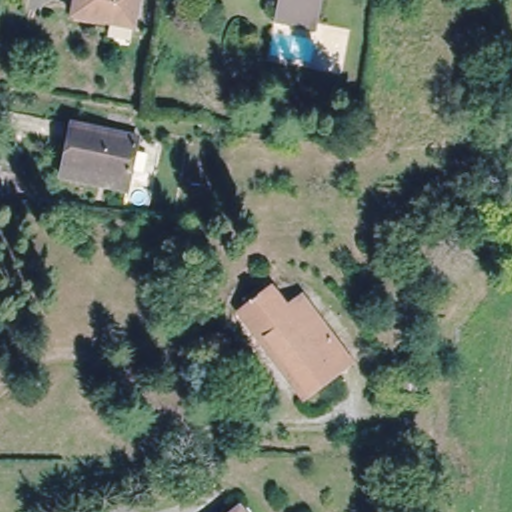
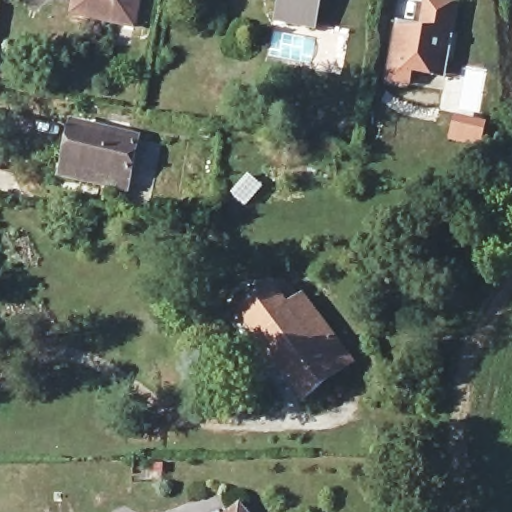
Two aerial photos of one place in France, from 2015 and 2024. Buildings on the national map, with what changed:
unchanged [(80,0),(142,0),(138,25),(86,14),(78,12),(80,0)]
unchanged [(311,17),(280,12),(282,0),(313,0),(311,17)]
unchanged [(325,1),(319,0),(325,0),(325,1)]
new [(458,4),(452,39),(449,37),(442,80),(412,76),(410,87),(386,83),(395,21),(420,25),(424,0),(438,0),(458,4)]
unchanged [(62,179),(63,171),(73,124),(140,139),(131,186),(128,185),(127,192),(62,179)]
unchanged [(0,188),(0,154),(11,156),(4,189),(0,188)]
unchanged [(248,305),(246,301),(253,296),(256,299),(266,290),(282,313),(297,301),(347,368),(300,402),(282,379),(289,373),(264,340),(256,345),(233,315),(248,305)]
unchanged [(249,512),(229,512),(241,502),(249,512)]

